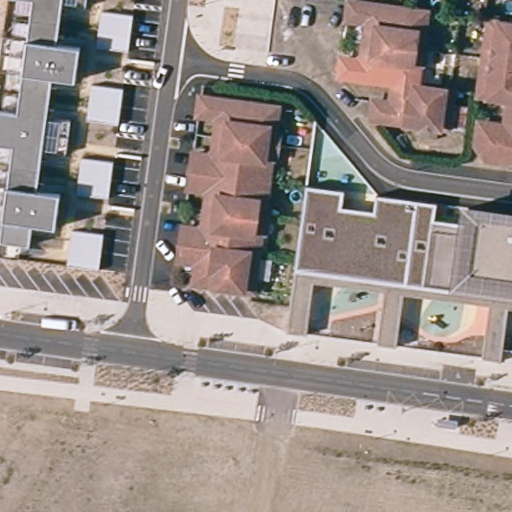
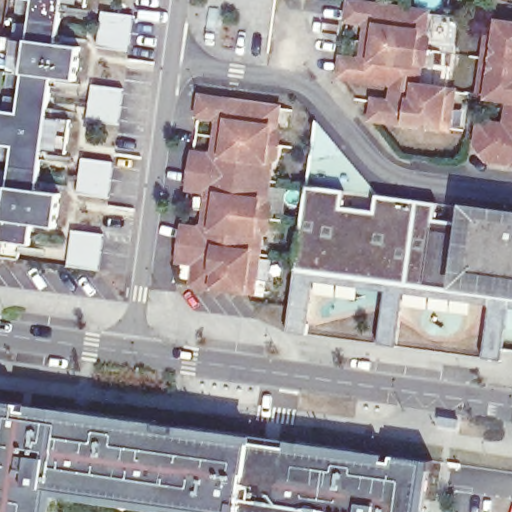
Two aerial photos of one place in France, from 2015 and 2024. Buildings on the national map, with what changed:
unchanged [(63,2),(58,44),(81,47),(77,81),(52,79),(47,117),(71,121),(67,153),(43,150),(37,192),(61,195),(57,228),(33,227),(31,246),(19,254),(19,258),(0,256),(0,252),(4,221),(0,220),(0,185),(9,187),(15,147),(0,144),(0,111),(20,114),(25,74),(0,70),(0,58),(3,36),(29,39),(34,0),(88,0),(87,7),(63,2)]
unchanged [(407,80),(351,74),(353,55),(375,58),(377,39),(380,19),(359,16),(362,0),(372,0),(417,7),(439,10),(428,82),(462,87),(460,107),(406,91),(407,80)]
unchanged [(133,15),(129,52),(97,48),(102,11),(133,15)]
unchanged [(487,49),(492,13),(512,15),(512,91),(482,86),(487,49)]
unchanged [(124,89),(119,124),(88,120),(92,84),(124,89)]
unchanged [(197,276),(200,255),(181,252),(184,217),(186,217),(204,220),(206,203),(207,185),(191,182),(193,165),(195,148),(212,151),(215,130),(217,112),(201,110),(202,99),(202,91),(211,92),(280,101),(277,120),(283,128),(282,138),(280,154),(272,158),(271,162),(252,160),(246,207),(241,243),(238,263),(257,266),(255,283),(197,276)]
unchanged [(457,125),(382,114),(386,95),(405,97),(406,91),(460,107),(457,125)]
unchanged [(512,103),(512,119),(510,119),(512,103)]
unchanged [(477,137),(481,115),(510,119),(512,119),(512,152),(495,151),(477,137)]
unchanged [(114,162),(109,199),(77,194),(81,157),(114,162)]
unchanged [(271,162),(269,174),(267,195),(273,203),(272,211),(271,222),(262,229),(260,246),(257,266),(238,263),(241,243),(246,207),(252,160),(271,162)]
unchanged [(325,184),(346,187),(343,204),(375,208),(377,192),(438,201),(436,217),(467,222),(470,206),(512,212),(512,298),(314,268),(296,266),(297,254),(307,182),(308,182),(325,184)]
unchanged [(104,234),(100,269),(67,265),(72,230),(104,234)]
unchanged [(512,298),(512,308),(508,307),(501,361),(481,357),(489,305),(404,292),(396,345),(377,342),(385,289),(314,278),(307,332),(287,328),(292,292),(296,266),(314,268),(512,298)]
new [(32,392),(30,402),(257,435),(257,441),(287,446),(288,440),(432,462),(425,512),(222,512),(59,488),(55,512),(0,512),(0,390),(32,392)]

